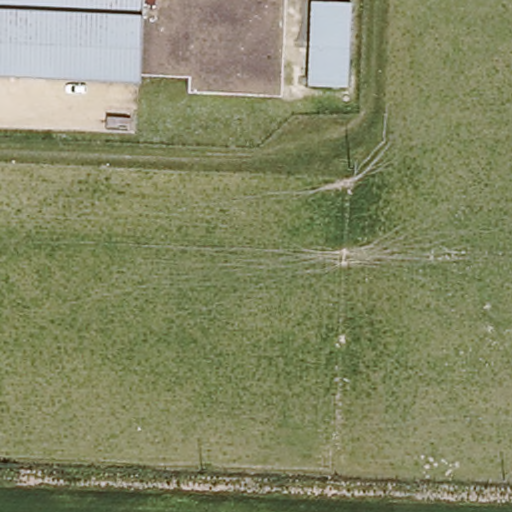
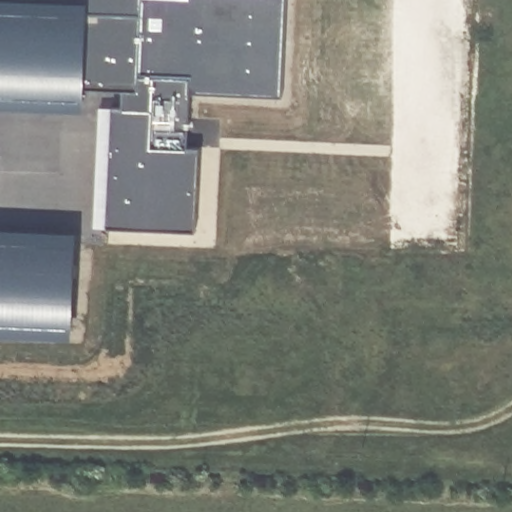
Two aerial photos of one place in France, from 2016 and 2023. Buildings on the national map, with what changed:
unchanged [(188,91),(189,76),(174,75),(138,74),(138,82),(0,76),(0,0),(288,0),(284,95),(188,91)]
unchanged [(316,86),(319,4),(358,6),(354,88),(316,86)]
new [(185,146),(197,146),(193,230),(103,226),(111,106),(121,106),(123,81),(138,82),(138,74),(189,76),(188,92),(185,146)]
new [(72,326),(0,322),(0,237),(75,240),(72,326)]

